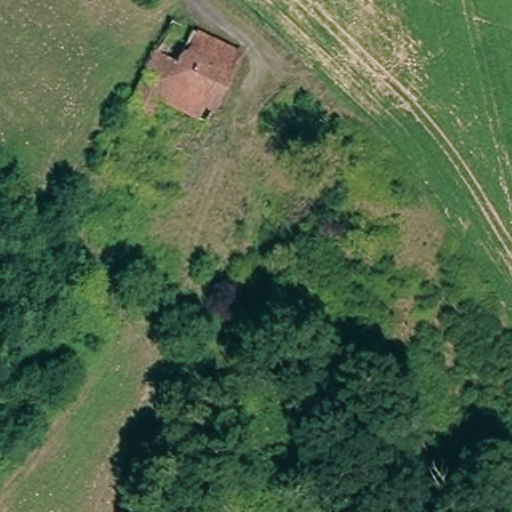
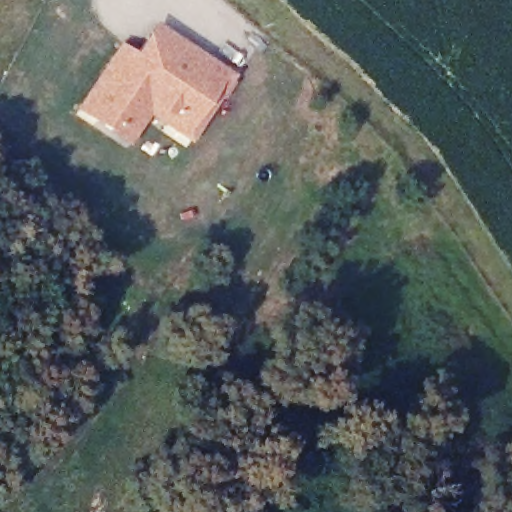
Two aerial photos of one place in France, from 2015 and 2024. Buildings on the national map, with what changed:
demolished [(218,121),(167,97),(157,118),(135,108),(176,17),(248,53),(218,121)]
new [(127,148),(74,110),(118,43),(133,54),(155,23),(234,76),(190,144),(148,116),(127,148)]

